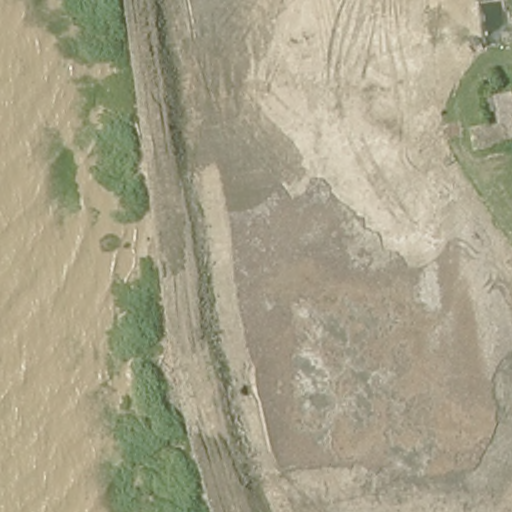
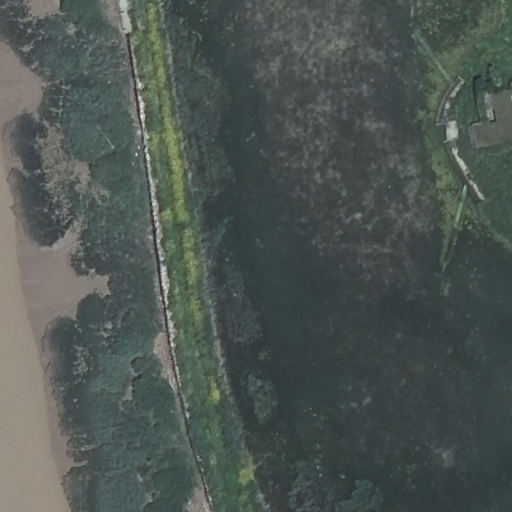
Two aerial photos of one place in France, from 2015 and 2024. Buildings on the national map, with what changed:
unchanged [(506,160),(497,98),(512,96),(512,160),(506,160)]

